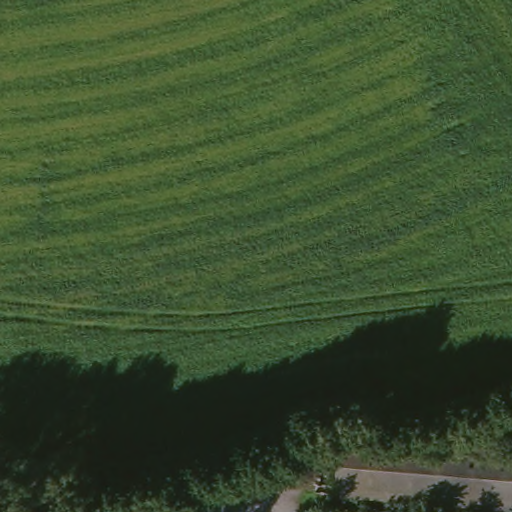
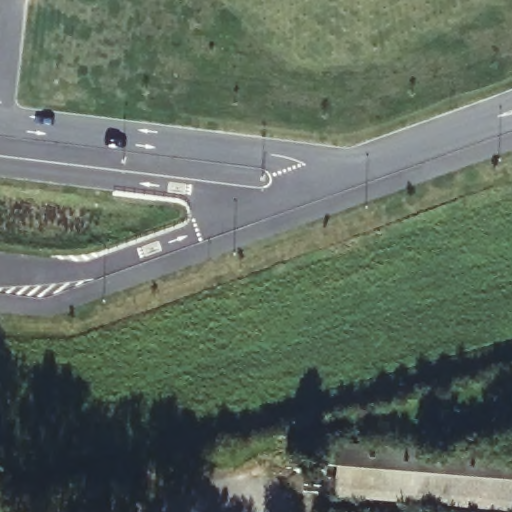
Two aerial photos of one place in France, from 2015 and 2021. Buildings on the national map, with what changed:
unchanged [(338,445),(340,434),(512,456),(512,512),(482,512),(332,494),(338,445)]
unchanged [(326,505),(424,512),(326,512),(326,505)]

